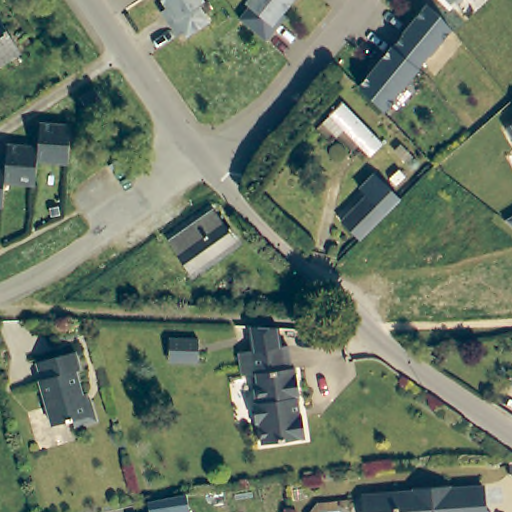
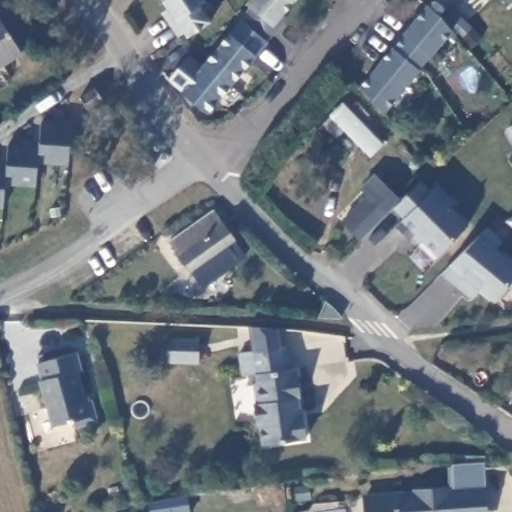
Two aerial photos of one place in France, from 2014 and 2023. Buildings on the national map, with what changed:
unchanged [(161,17),(166,13),(157,0),(199,0),(204,6),(197,10),(209,27),(187,41),(186,42),(184,39),(182,37),(177,41),(161,17)]
unchanged [(278,26),(267,39),(266,38),(241,17),(251,5),(247,2),(249,0),(294,0),(292,1),(283,12),(287,15),(278,26)]
unchanged [(448,3),(446,0),(451,0),(448,3)]
unchanged [(456,3),(453,0),(458,0),(456,3)]
unchanged [(438,14),(452,30),(430,55),(429,54),(417,67),(418,68),(386,106),(382,110),(359,84),(362,80),(392,45),(393,46),(405,33),(403,32),(427,4),(438,14)]
unchanged [(0,64),(0,20),(20,51),(0,64)]
new [(178,69),(192,81),(238,27),(242,20),(267,39),(205,116),(180,95),(181,94),(170,85),(169,85),(167,82),(178,69)]
unchanged [(95,88),(102,99),(86,109),(80,97),(95,88)]
unchanged [(329,119),(346,105),(387,143),(371,160),(329,119)]
unchanged [(505,127),(512,123),(512,139),(505,127)]
unchanged [(35,191),(5,189),(2,211),(0,211),(0,172),(6,172),(8,148),(38,150),(40,127),(71,129),(67,170),(37,168),(35,191)]
new [(342,224),(369,197),(358,186),(373,172),(402,200),(387,216),(360,242),(342,224)]
new [(437,184),(456,202),(451,207),(469,225),(437,258),(413,235),(408,240),(397,227),(405,219),(394,208),(402,200),(422,180),(432,190),(437,184)]
demolished [(387,216),(360,242),(342,224),(369,197),(387,216)]
unchanged [(167,241),(210,210),(233,240),(191,272),(167,241)]
unchanged [(503,220),(512,215),(512,228),(503,220)]
new [(488,226),(505,241),(497,250),(512,263),(512,296),(505,290),(496,301),(480,289),(471,299),(443,275),(452,266),(480,236),(488,226)]
unchanged [(177,360),(177,354),(177,336),(206,338),(205,355),(205,361),(177,360)]
unchanged [(256,421),(252,422),(249,402),(253,401),(248,371),(241,372),(237,352),(286,344),(289,364),(292,364),(298,397),(293,398),(297,416),(301,415),(305,437),(259,444),(256,421)]
unchanged [(43,381),(39,363),(78,353),(82,371),(77,372),(85,401),(91,399),(97,422),(75,428),(73,422),(52,428),(41,381),(43,381)]
unchanged [(417,499),(417,496),(447,493),(448,496),(483,493),(485,510),(485,512),(365,512),(364,502),(417,499)]
unchanged [(164,505),(178,502),(183,502),(184,512),(147,512),(147,509),(164,505)]

